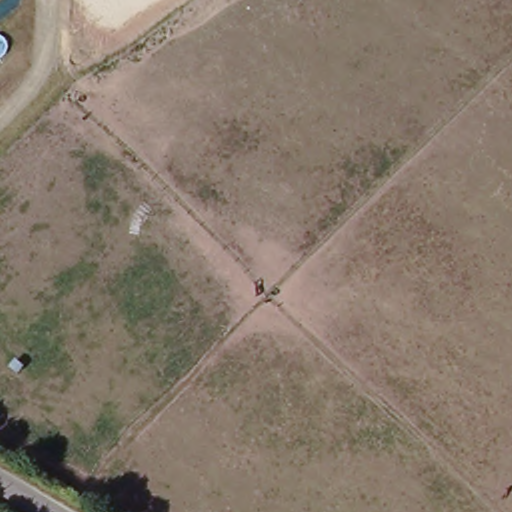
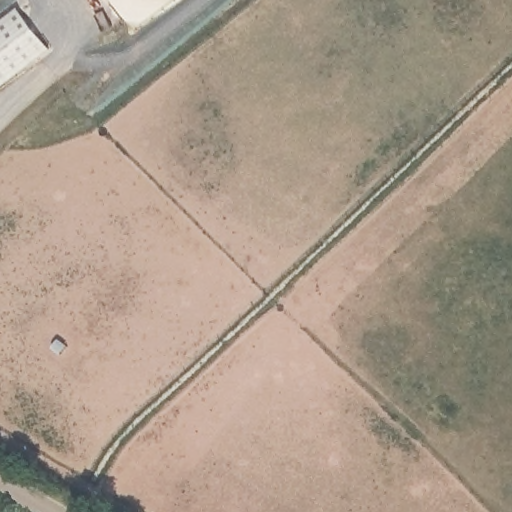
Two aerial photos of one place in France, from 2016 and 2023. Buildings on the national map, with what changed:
new [(51,48),(0,87),(0,24),(20,9),(51,48)]

